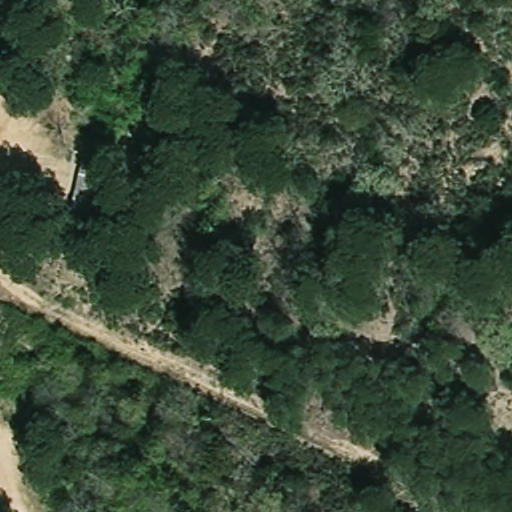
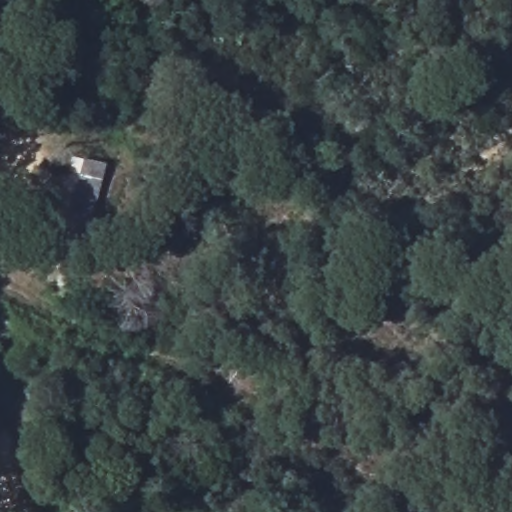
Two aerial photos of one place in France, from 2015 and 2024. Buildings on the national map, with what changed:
unchanged [(97,220),(70,215),(83,155),(109,162),(97,220)]

